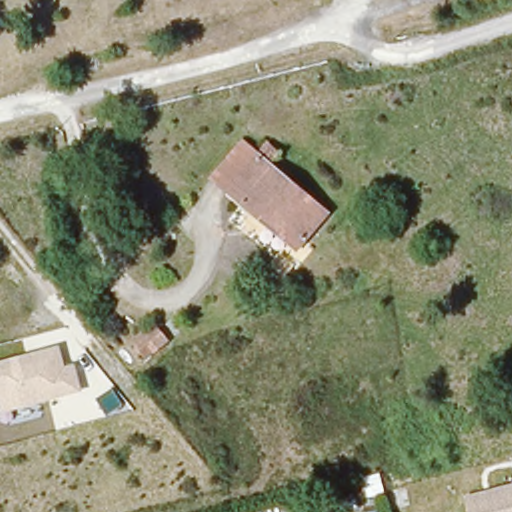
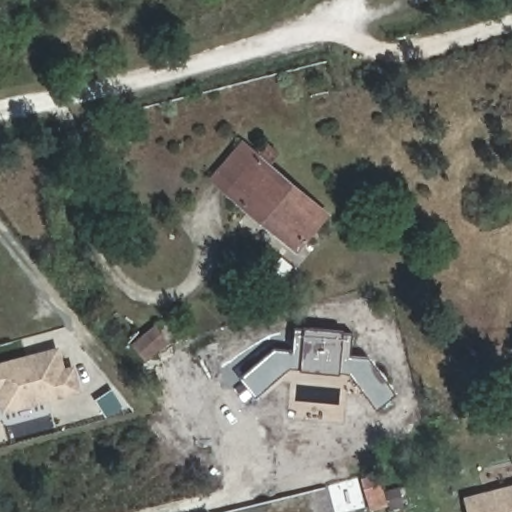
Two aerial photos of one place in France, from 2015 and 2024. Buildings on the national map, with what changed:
unchanged [(319,207),(286,238),(221,175),(255,140),(319,207)]
new [(155,327),(167,342),(146,359),(134,344),(155,327)]
new [(377,408),(349,373),(289,367),(255,397),(240,379),(273,349),(294,351),(295,328),(350,334),(349,356),(368,357),(395,393),(377,408)]
unchanged [(64,366),(72,363),(79,392),(0,412),(0,357),(58,342),(64,366)]
unchanged [(512,482),(512,512),(464,512),(459,495),(512,482)]

